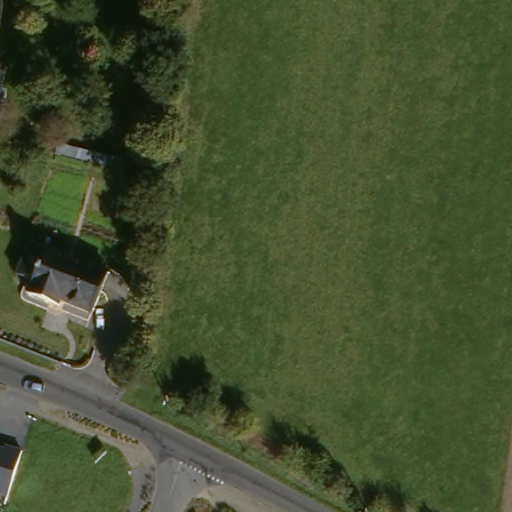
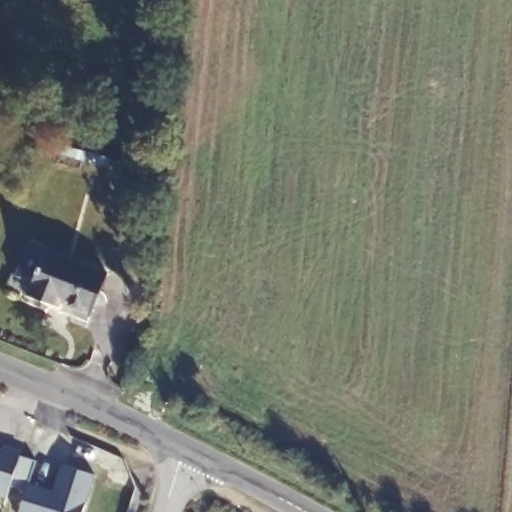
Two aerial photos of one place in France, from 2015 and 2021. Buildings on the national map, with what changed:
unchanged [(112,283),(96,322),(65,311),(63,316),(33,304),(38,291),(21,285),(34,252),(112,283)]
new [(97,474),(84,512),(19,512),(27,489),(11,485),(19,462),(0,456),(0,447),(5,448),(6,445),(24,451),(21,456),(37,461),(30,482),(54,491),(62,464),(97,474)]
unchanged [(19,462),(6,500),(0,497),(0,456),(19,462)]

